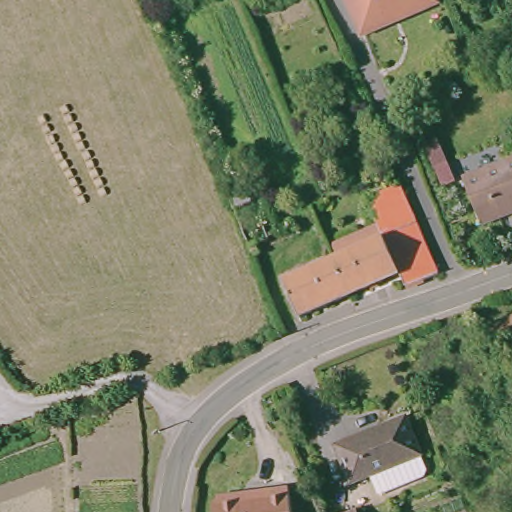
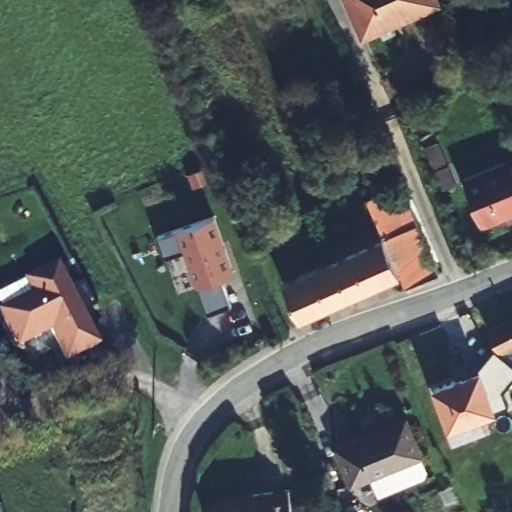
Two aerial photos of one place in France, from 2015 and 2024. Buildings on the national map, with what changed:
unchanged [(387,26),(357,40),(341,0),(431,0),(434,7),(387,26)]
unchanged [(511,138),(512,138),(512,141),(511,138)]
unchanged [(481,221),(460,174),(512,152),(512,208),(481,221)]
new [(193,173),(208,167),(213,180),(198,186),(193,173)]
unchanged [(374,222),(363,197),(397,182),(435,270),(402,285),(395,271),(374,222)]
unchanged [(255,203),(270,240),(259,245),(262,255),(255,259),(235,211),(255,203)]
new [(217,215),(236,270),(225,274),(234,302),(211,310),(190,249),(170,255),(162,234),(217,215)]
unchanged [(329,256),(324,244),(374,222),(395,271),(346,292),(329,256)]
unchanged [(346,292),(294,316),(279,278),(329,256),(346,292)]
new [(47,330),(47,332),(30,341),(23,339),(7,309),(40,292),(33,278),(64,262),(105,340),(74,356),(57,324),(47,330)]
unchanged [(510,344),(502,347),(491,326),(512,314),(512,343),(510,344)]
new [(479,369),(492,350),(502,353),(501,358),(506,359),(505,363),(512,365),(512,367),(495,413),(447,431),(432,387),(479,369)]
unchanged [(407,414),(421,452),(352,476),(338,437),(407,414)]
unchanged [(217,512),(216,504),(215,498),(250,491),(285,484),(291,512),(217,512)]
unchanged [(355,512),(333,512),(352,505),(355,512)]

